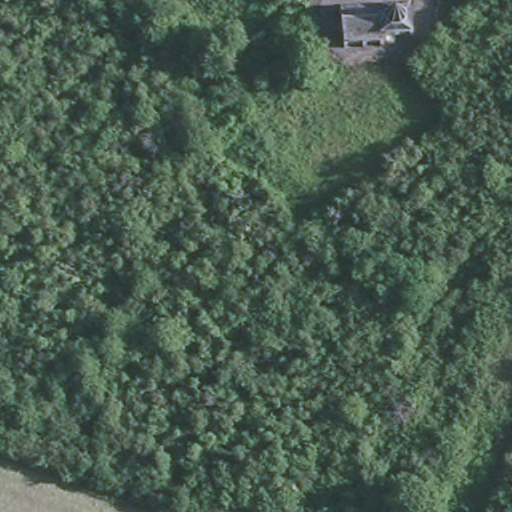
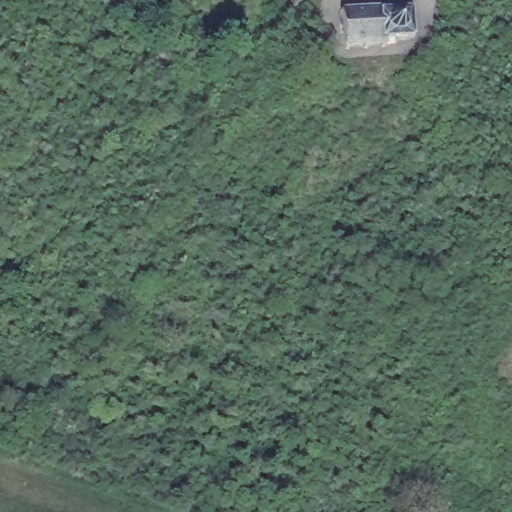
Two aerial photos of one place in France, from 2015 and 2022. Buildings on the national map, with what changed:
unchanged [(373,42),(370,42),(370,46),(367,46),(366,43),(353,43),(352,47),(349,48),(348,44),(334,45),(334,49),(331,49),(330,46),(329,46),(325,11),(327,10),(327,7),(331,7),(332,10),(345,9),(345,6),(349,6),(349,9),(362,8),(362,5),(367,4),(367,7),(370,7),(370,12),(395,10),(395,8),(414,8),(425,7),(427,36),(417,37),(400,37),(397,35),(372,37),(373,42)]

